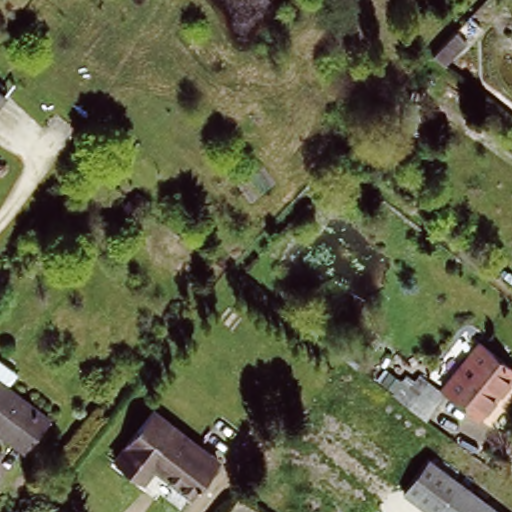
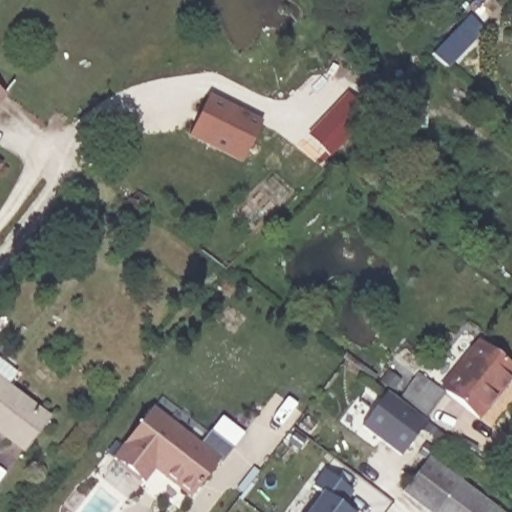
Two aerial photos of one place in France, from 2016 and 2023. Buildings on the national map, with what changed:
unchanged [(0,88),(8,93),(0,104),(0,88)]
new [(243,165),(188,139),(210,95),(262,121),(243,165)]
unchanged [(0,169),(0,160),(4,164),(0,169)]
unchanged [(153,224),(137,243),(124,235),(139,214),(153,224)]
unchanged [(422,415),(397,397),(418,371),(438,386),(474,340),(512,369),(477,416),(449,393),(427,419),(422,415)]
unchanged [(20,448),(0,431),(0,379),(45,417),(20,448)]
new [(362,426),(388,392),(397,397),(422,415),(427,419),(401,456),(362,426)]
unchanged [(112,457),(152,406),(215,457),(189,492),(150,462),(139,477),(112,457)]
unchanged [(439,460),(505,512),(440,512),(415,493),(439,460)]
new [(314,485),(325,470),(354,491),(346,508),(351,512),(308,512),(323,491),(314,485)]

